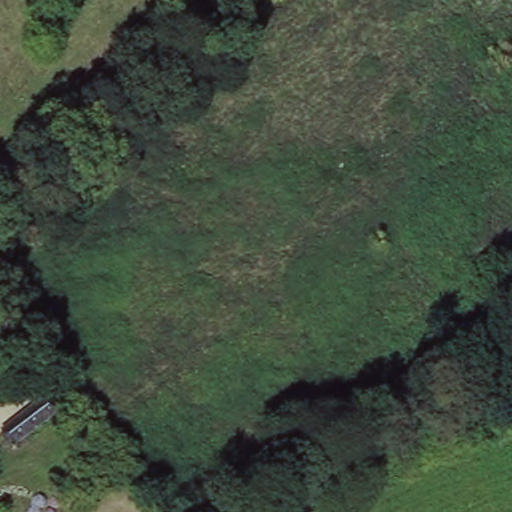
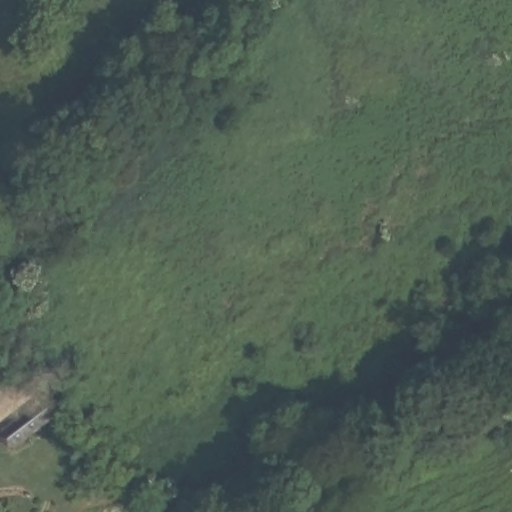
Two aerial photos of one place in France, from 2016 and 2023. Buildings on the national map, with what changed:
unchanged [(42,395),(52,409),(9,443),(0,431),(0,428),(42,395)]

